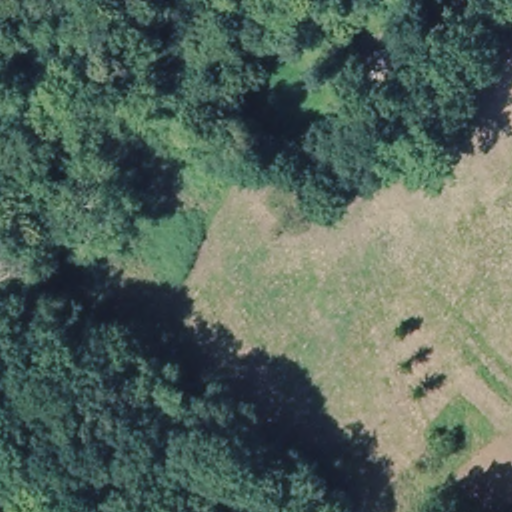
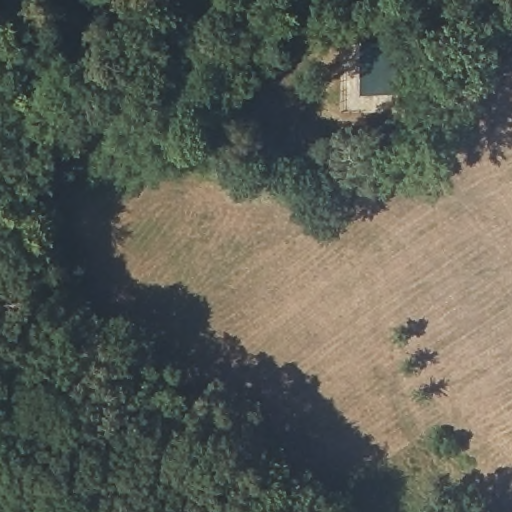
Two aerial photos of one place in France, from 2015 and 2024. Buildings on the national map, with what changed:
unchanged [(370,39),(369,84),(320,81),(321,42),(370,39)]

